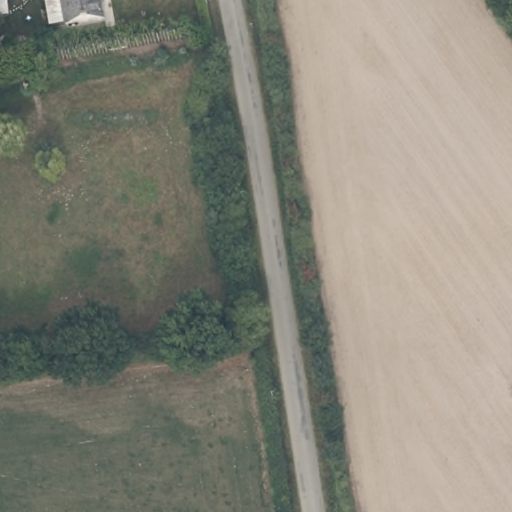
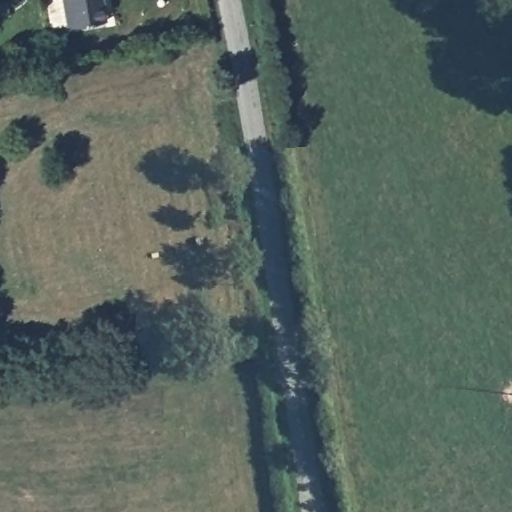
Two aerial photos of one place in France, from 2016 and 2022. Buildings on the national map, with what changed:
unchanged [(101,19),(61,25),(57,0),(98,0),(101,19)]

